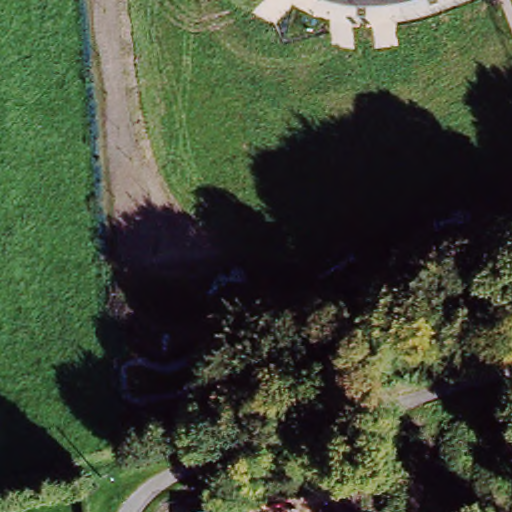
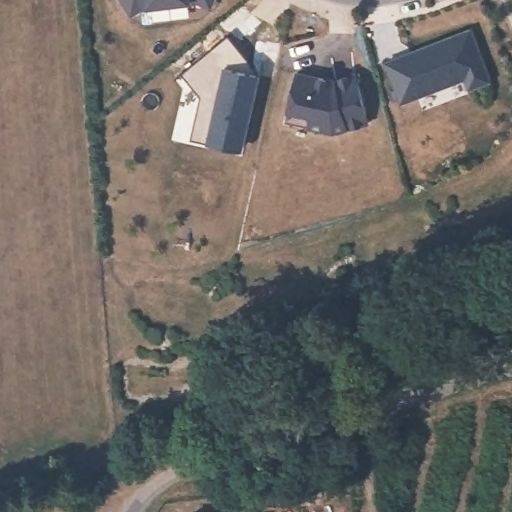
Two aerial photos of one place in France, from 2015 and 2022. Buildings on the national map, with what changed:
new [(212,10),(190,2),(148,7),(132,17),(121,0),(215,0),(212,10)]
new [(471,27),(492,81),(470,91),(465,79),(402,105),(385,62),(471,27)]
new [(260,75),(243,152),(191,138),(200,96),(181,72),(228,35),(260,75)]
new [(300,75),(335,82),(358,77),(370,125),(336,134),(290,123),(300,75)]
unchanged [(225,512),(248,510),(249,512),(225,512)]

